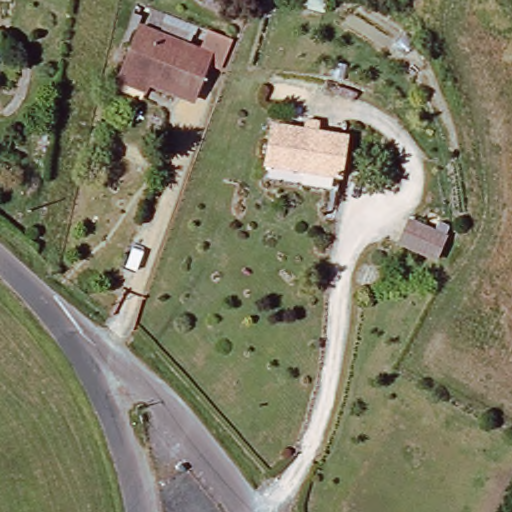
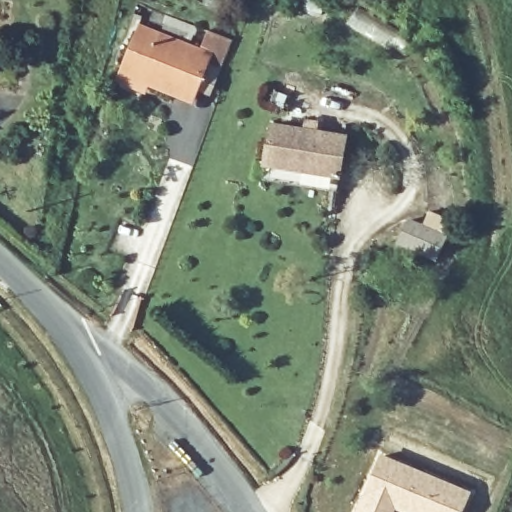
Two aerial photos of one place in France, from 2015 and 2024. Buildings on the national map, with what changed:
unchanged [(120,72),(139,28),(194,51),(201,34),(226,46),(215,71),(206,66),(189,102),(120,72)]
unchanged [(262,180),(272,127),(347,141),(337,194),(262,180)]
unchanged [(455,240),(442,261),(407,241),(420,220),(455,240)]
new [(382,465),(473,508),(472,512),(361,512),(382,465)]

